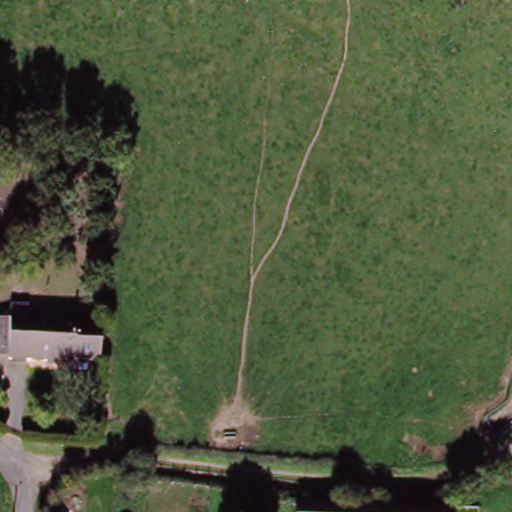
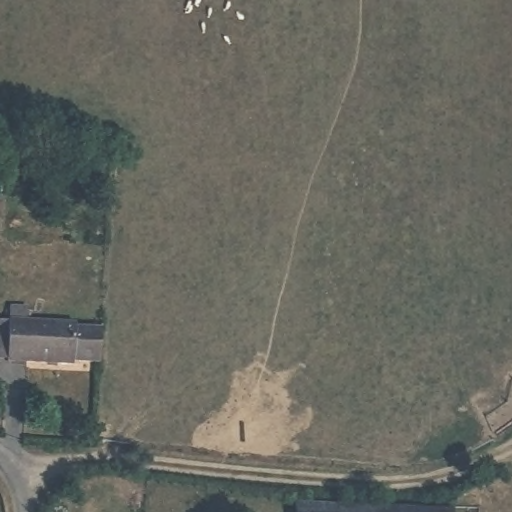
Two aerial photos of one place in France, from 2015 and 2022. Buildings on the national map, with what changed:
unchanged [(63,323),(62,328),(88,328),(87,364),(60,363),(60,368),(0,364),(0,320),(63,323)]
unchanged [(296,506),(379,512),(296,512),(296,506)]

